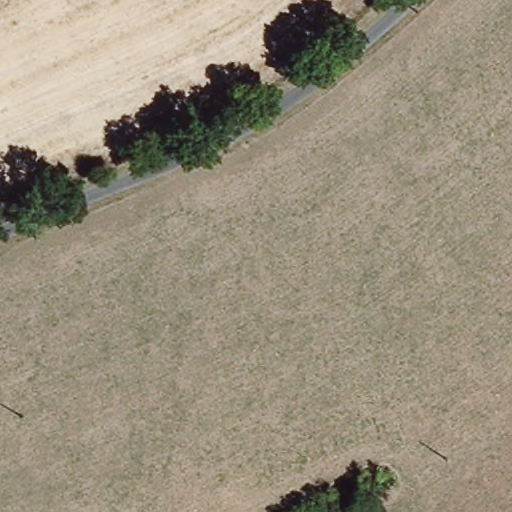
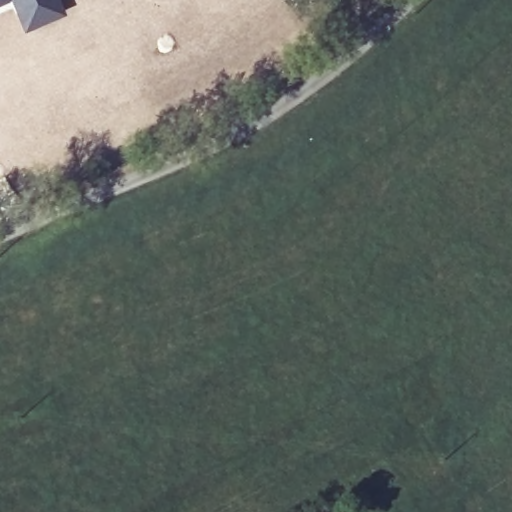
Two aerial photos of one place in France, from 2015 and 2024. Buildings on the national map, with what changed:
new [(23,31),(10,1),(0,5),(0,0),(61,0),(66,14),(23,31)]

